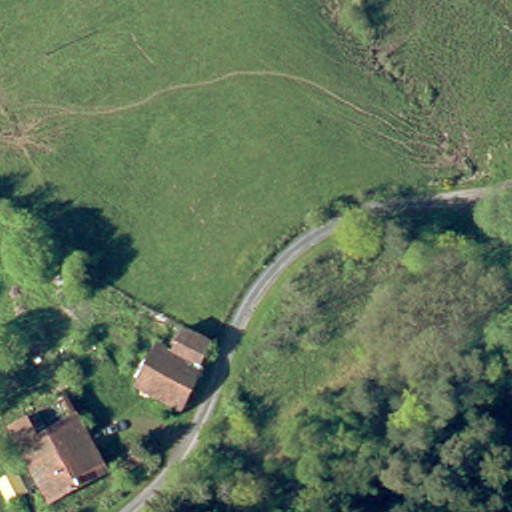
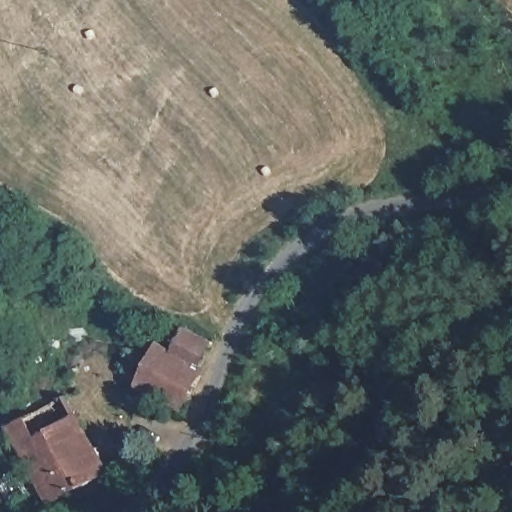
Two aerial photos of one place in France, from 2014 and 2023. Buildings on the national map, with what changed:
unchanged [(165,348),(176,357),(193,331),(223,349),(181,411),(141,383),(165,348)]
unchanged [(112,477),(56,506),(10,427),(65,398),(112,477)]

